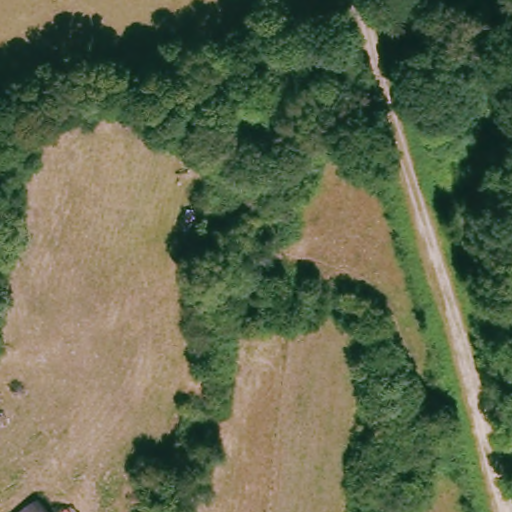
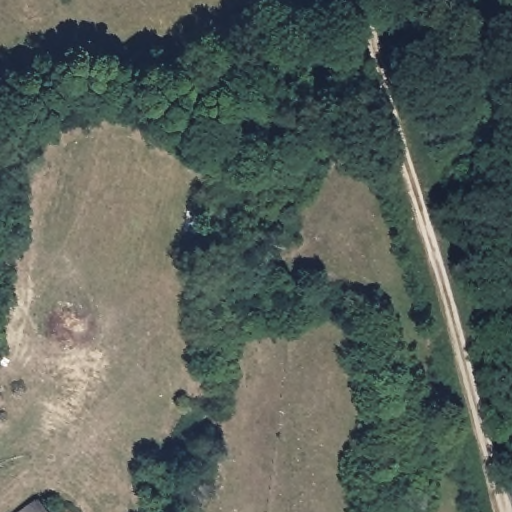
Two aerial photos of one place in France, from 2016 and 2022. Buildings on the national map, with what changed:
unchanged [(48,507),(63,497),(74,512),(4,512),(33,489),(48,507)]

